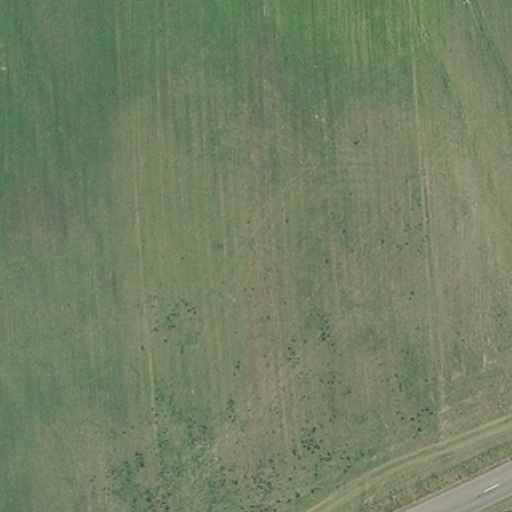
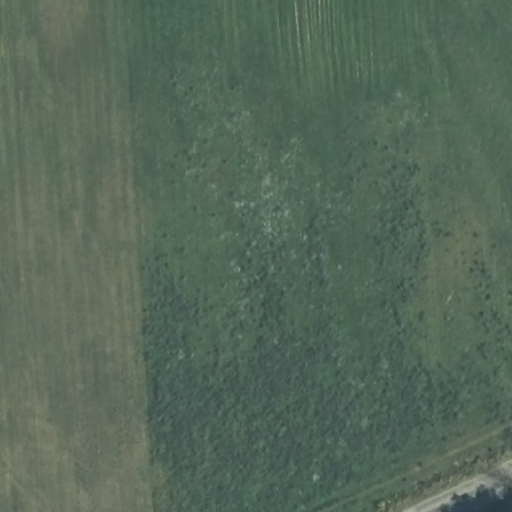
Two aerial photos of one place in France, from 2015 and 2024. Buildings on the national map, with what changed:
[]

